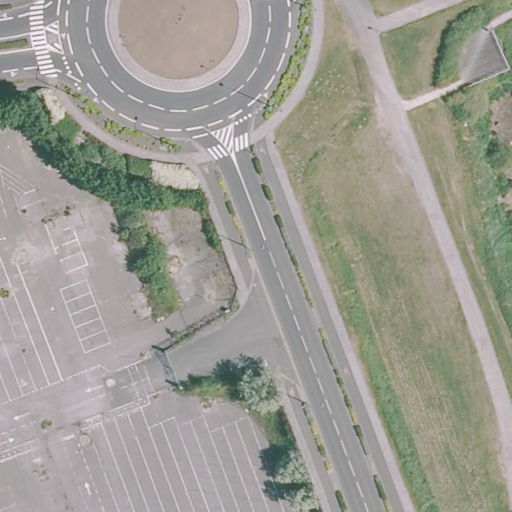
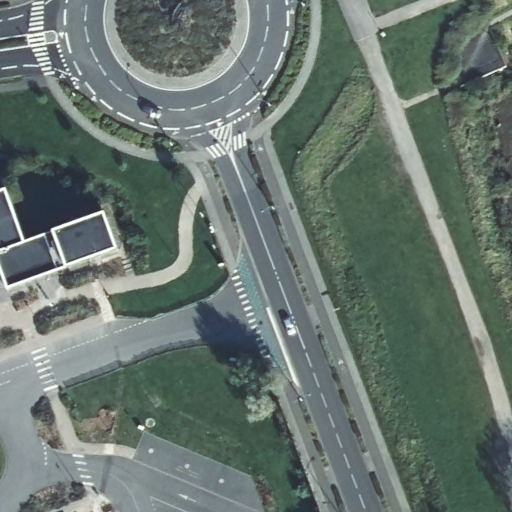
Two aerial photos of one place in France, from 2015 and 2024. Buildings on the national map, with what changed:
new [(68,267),(7,289),(0,269),(0,192),(6,190),(26,243),(56,232),(104,214),(118,250),(68,267)]
demolished [(196,294),(183,298),(148,206),(163,204),(196,294)]

